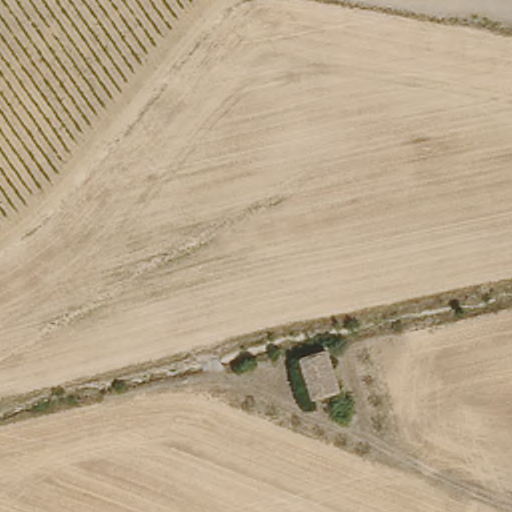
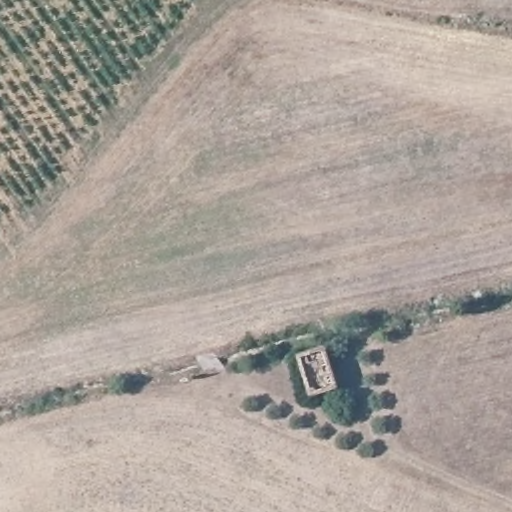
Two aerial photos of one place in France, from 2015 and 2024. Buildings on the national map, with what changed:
unchanged [(326,349),(335,389),(308,394),(295,356),(326,349)]

